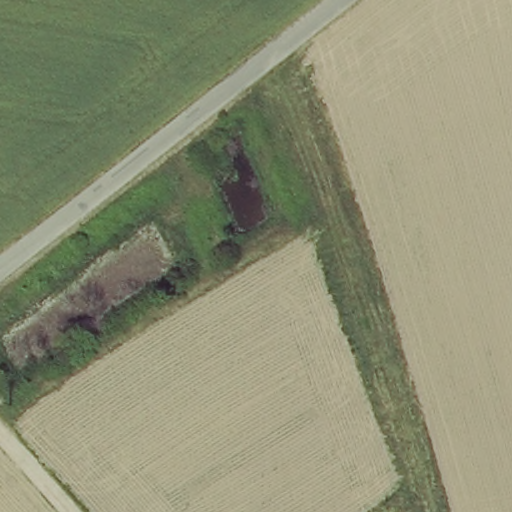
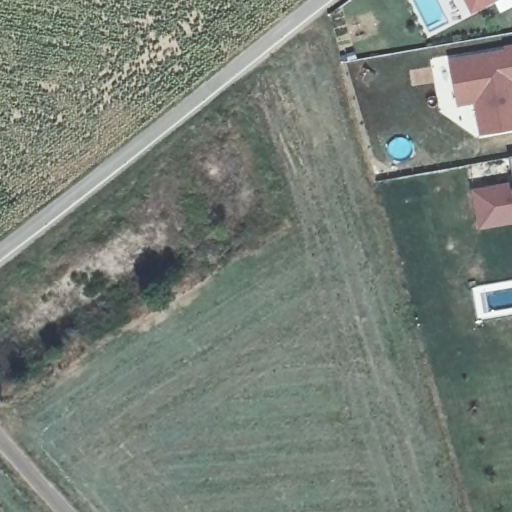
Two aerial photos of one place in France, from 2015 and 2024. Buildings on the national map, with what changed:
new [(473,10),(468,0),(481,0),(483,5),(473,10)]
new [(481,0),(492,0),(483,4),(481,0)]
new [(508,80),(510,89),(512,89),(512,128),(483,133),(475,85),(457,88),(452,62),(508,52),(507,49),(512,48),(512,79),(508,80)]
new [(478,100),(460,103),(457,88),(475,85),(478,100)]
new [(510,158),(512,158),(512,173),(510,158)]
new [(494,225),(480,227),(478,214),(475,191),(512,185),(512,222),(494,225)]

